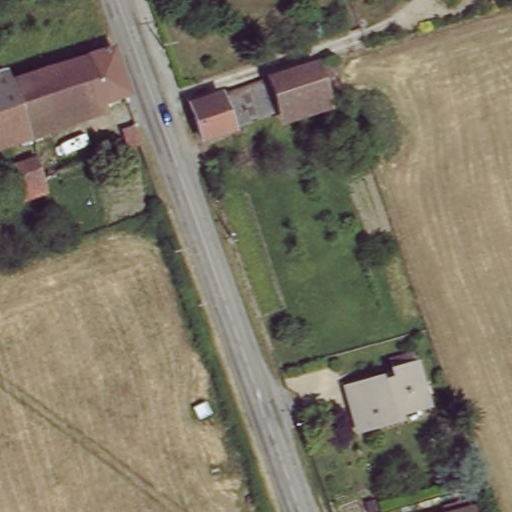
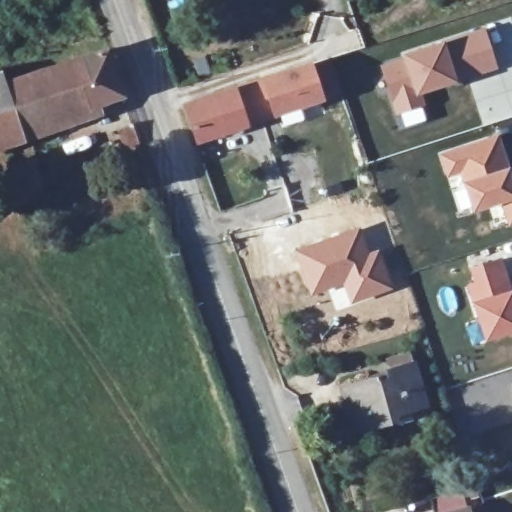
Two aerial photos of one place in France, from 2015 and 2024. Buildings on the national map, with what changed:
new [(485,26),(499,69),(470,77),(459,81),(446,40),(485,26)]
new [(401,54),(400,51),(446,40),(459,81),(421,92),(427,121),(402,127),(397,114),(394,115),(378,62),(401,54)]
unchanged [(49,128),(46,141),(0,154),(0,73),(4,72),(11,92),(112,57),(126,100),(49,128)]
new [(196,143),(182,102),(312,61),(313,65),(331,59),(340,91),(196,143)]
new [(470,77),(499,69),(512,65),(512,117),(482,127),(468,82),(471,82),(470,77)]
demolished [(309,95),(270,109),(259,82),(301,67),(309,95)]
demolished [(210,97),(221,130),(194,139),(182,107),(210,97)]
new [(499,132),(510,165),(457,181),(456,177),(447,181),(436,152),(499,132)]
unchanged [(31,162),(44,194),(19,204),(8,170),(31,162)]
new [(512,170),(512,200),(499,205),(468,213),(457,181),(510,165),(512,170)]
new [(507,227),(499,205),(512,200),(512,226),(507,227)]
new [(359,225),(370,251),(378,247),(394,288),(336,311),(328,291),(310,297),(292,249),(359,225)]
new [(468,267),(502,256),(512,285),(512,332),(484,341),(464,284),(473,281),(468,267)]
unchanged [(426,408),(398,417),(400,427),(361,440),(346,394),(375,383),(377,390),(391,386),(389,377),(413,370),(426,408)]

